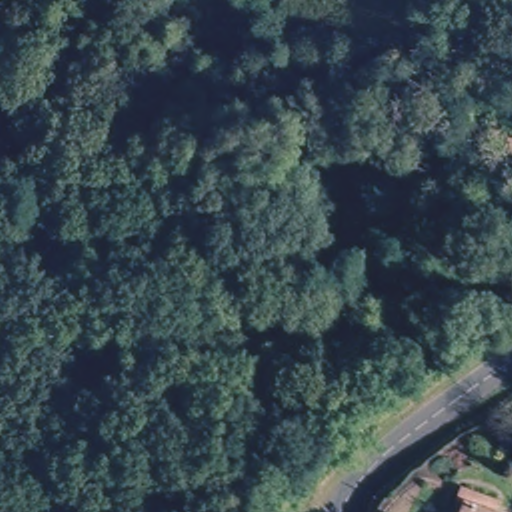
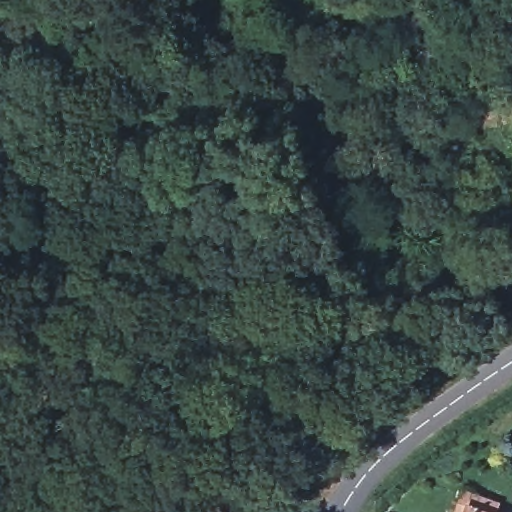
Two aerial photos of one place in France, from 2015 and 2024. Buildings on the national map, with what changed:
unchanged [(511,510),(511,512),(465,512),(470,497),(511,510)]

